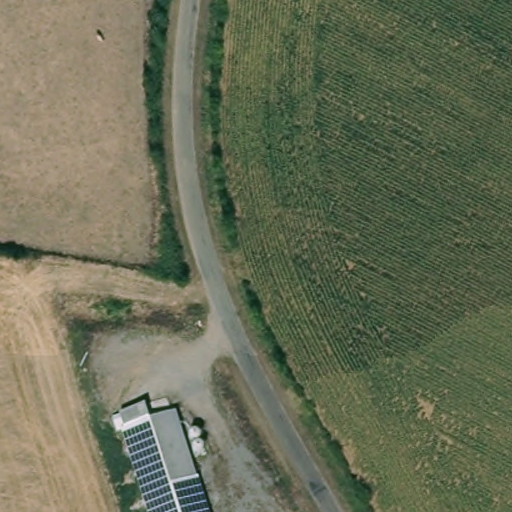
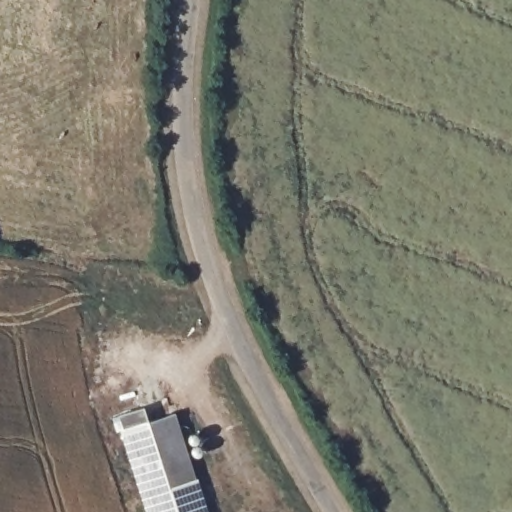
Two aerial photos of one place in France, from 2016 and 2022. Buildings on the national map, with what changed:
unchanged [(125,418),(150,411),(154,424),(177,416),(211,512),(157,512),(125,418)]

